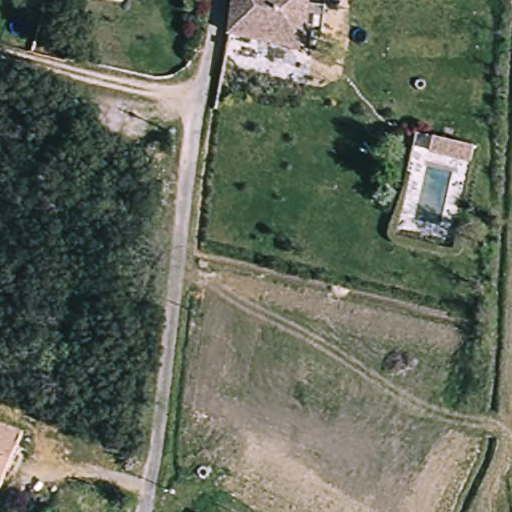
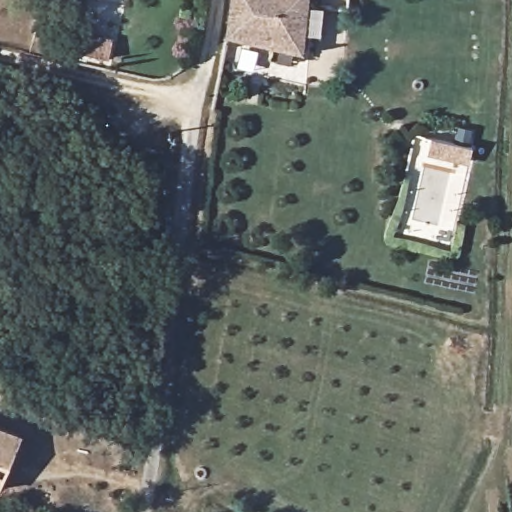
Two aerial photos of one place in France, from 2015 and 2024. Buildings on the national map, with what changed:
unchanged [(224,33),(229,0),(305,0),(300,52),(224,33)]
unchanged [(17,441),(0,492),(0,433),(17,441)]

